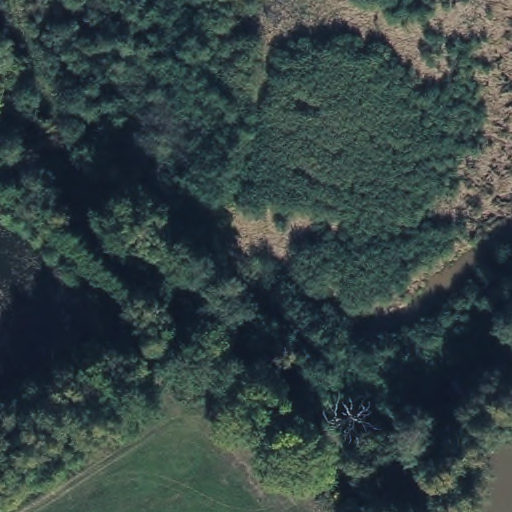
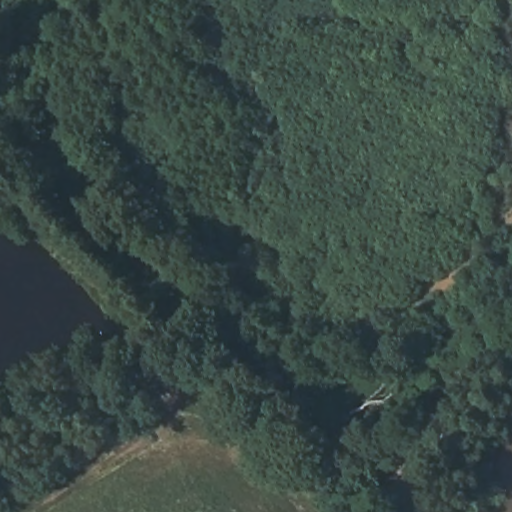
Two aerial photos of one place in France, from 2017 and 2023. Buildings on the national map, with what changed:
unchanged [(467,425),(433,448),(416,420),(448,397),(467,425)]

